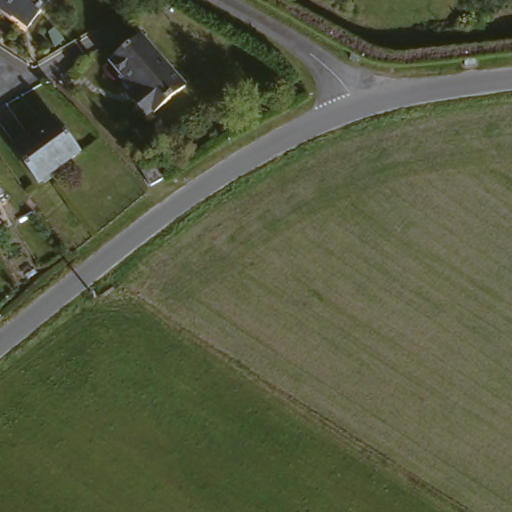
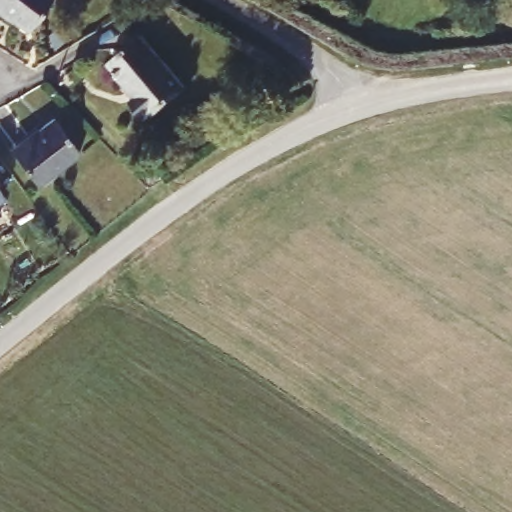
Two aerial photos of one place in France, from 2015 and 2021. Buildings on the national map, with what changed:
unchanged [(0,5),(0,0),(51,0),(31,29),(0,5)]
unchanged [(143,33),(195,79),(164,114),(157,107),(152,114),(138,102),(150,90),(117,62),(143,33)]
unchanged [(64,120),(89,155),(49,185),(23,150),(64,120)]
unchanged [(177,172),(166,186),(147,169),(159,156),(177,172)]
unchanged [(0,194),(0,176),(8,190),(0,194)]

